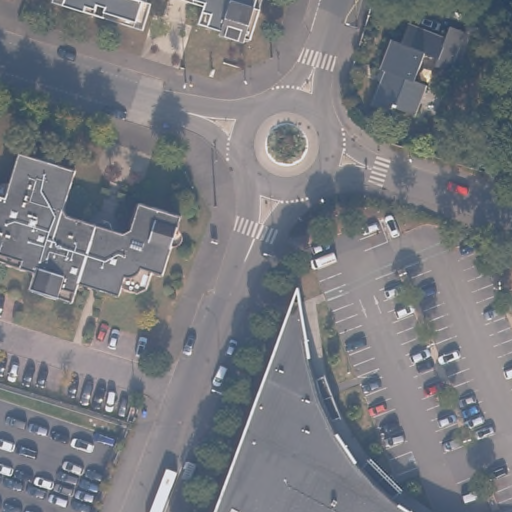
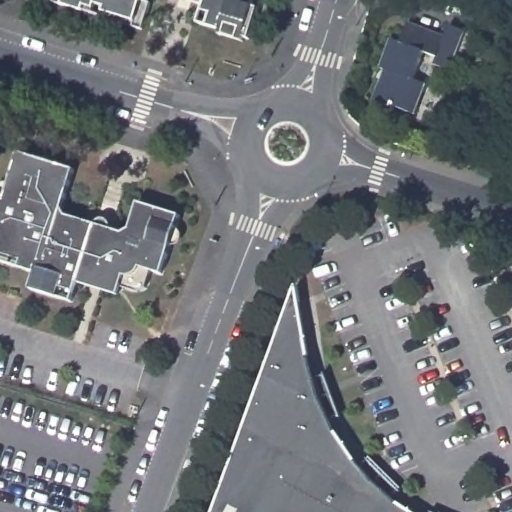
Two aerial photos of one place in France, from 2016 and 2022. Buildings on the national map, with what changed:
unchanged [(144,23),(73,0),(151,0),(144,23)]
unchanged [(249,33),(198,16),(203,0),(259,0),(249,33)]
unchanged [(386,75),(380,72),(392,43),(403,47),(411,25),(446,37),(452,24),(470,32),(454,71),(437,64),(441,57),(429,53),(417,84),(429,91),(416,121),(398,114),(396,118),(373,108),(386,75)]
unchanged [(71,302),(30,288),(36,271),(0,259),(0,214),(21,152),(76,170),(63,210),(65,216),(97,227),(103,224),(107,223),(111,225),(114,227),(114,231),(114,235),(131,241),(144,205),(183,218),(164,277),(154,274),(149,290),(139,294),(121,287),(118,296),(79,283),(71,302)]
unchanged [(312,329),(313,338),(315,352),(327,394),(342,427),(361,455),(381,478),(400,495),(404,498),(425,512),(217,512),(222,498),(284,329),(288,321),(303,281),(307,303),(312,329)]

